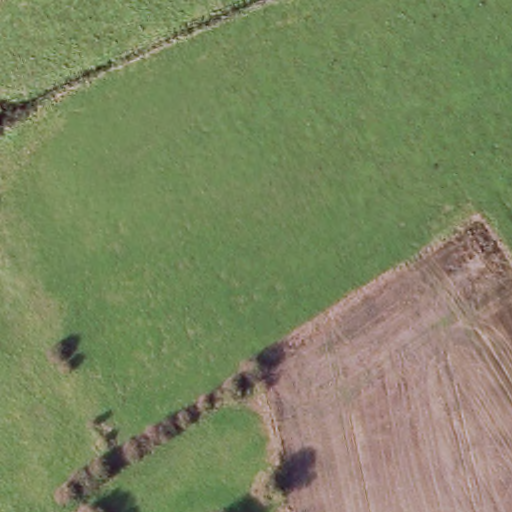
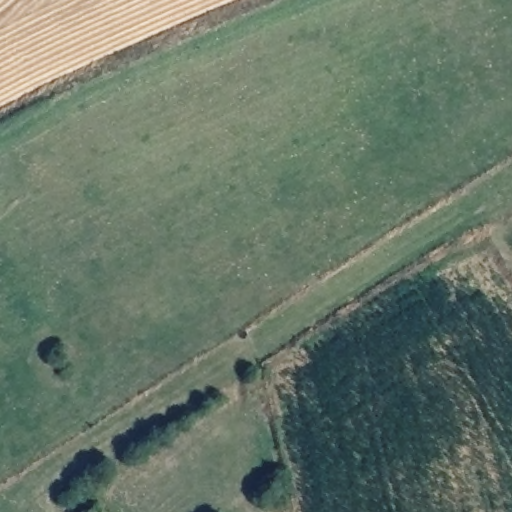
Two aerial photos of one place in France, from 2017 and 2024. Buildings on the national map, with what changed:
[]

